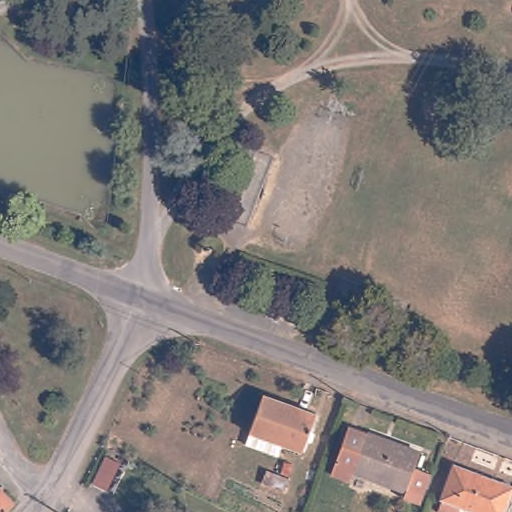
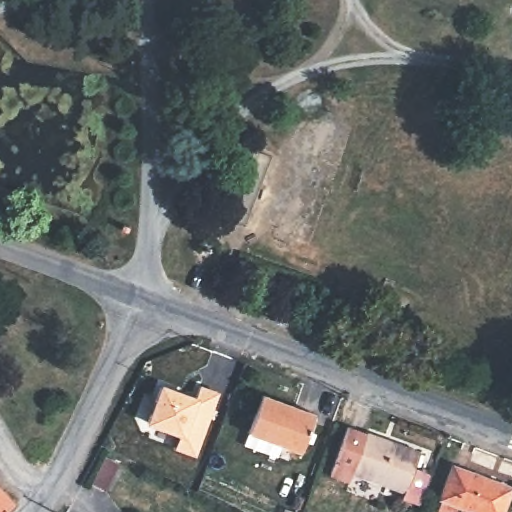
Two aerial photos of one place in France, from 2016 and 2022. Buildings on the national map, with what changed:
unchanged [(131,224),(127,231),(121,227),(125,220),(131,224)]
new [(161,383),(198,396),(201,385),(221,391),(197,456),(175,449),(181,436),(146,423),(161,383)]
unchanged [(317,411),(302,450),(284,443),(280,455),(246,442),(264,392),(317,411)]
unchanged [(400,500),(402,491),(350,473),(348,482),(329,475),(346,429),(416,454),(409,472),(430,480),(423,499),(420,506),(400,500)]
unchanged [(501,512),(485,512),(455,501),(451,512),(450,512),(435,506),(451,462),(512,483),(501,512)]
unchanged [(12,505),(5,512),(0,512),(0,488),(14,503),(12,505)]

